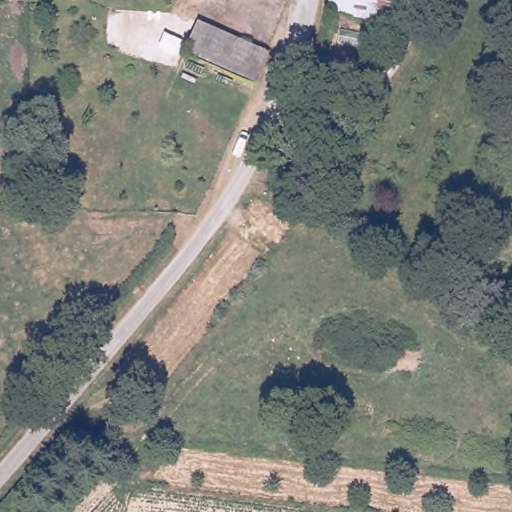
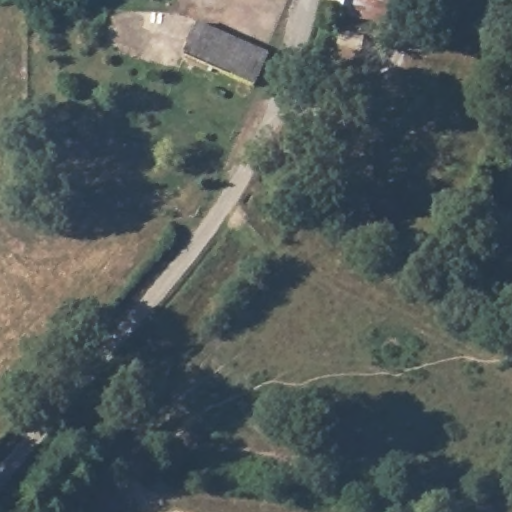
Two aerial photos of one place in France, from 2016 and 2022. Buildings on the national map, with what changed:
unchanged [(331,0),(361,0),(360,11),(330,7),(331,0)]
unchanged [(361,0),(384,0),(382,14),(360,11),(361,0)]
unchanged [(185,52),(202,18),(271,52),(255,85),(185,52)]

